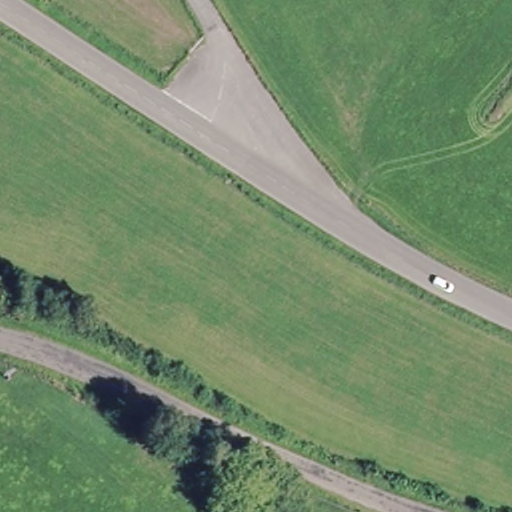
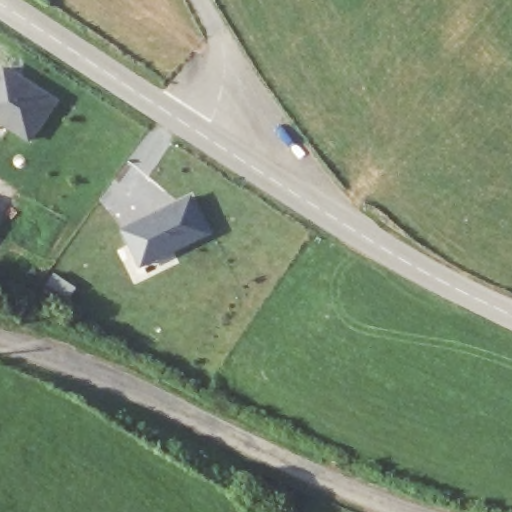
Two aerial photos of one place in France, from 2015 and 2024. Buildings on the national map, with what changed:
new [(59,99),(30,142),(0,123),(0,70),(4,64),(59,99)]
new [(120,228),(191,192),(211,232),(140,267),(120,228)]

